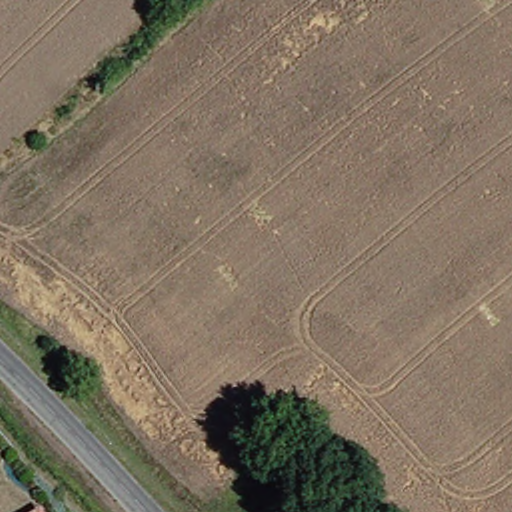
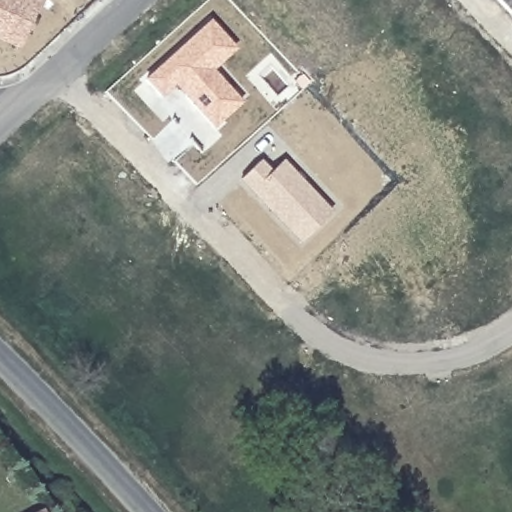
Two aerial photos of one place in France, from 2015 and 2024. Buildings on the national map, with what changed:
new [(0,43),(0,0),(37,0),(40,1),(18,51),(0,43)]
new [(212,70),(242,104),(212,130),(173,86),(159,99),(141,79),(210,19),(236,49),(212,70)]
new [(299,246),(237,181),(258,160),(269,173),(281,160),(331,213),(299,246)]
unchanged [(44,512),(36,512),(42,508),(44,512)]

